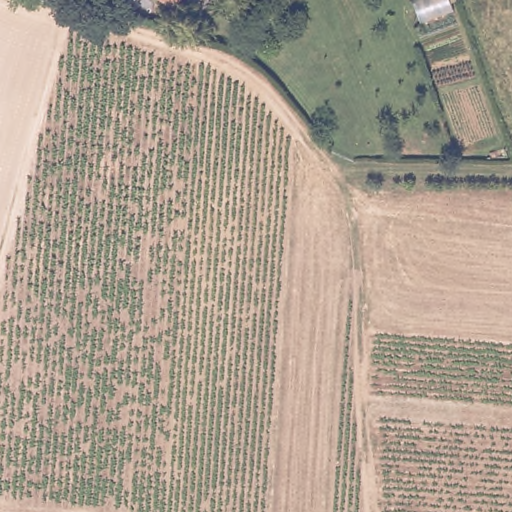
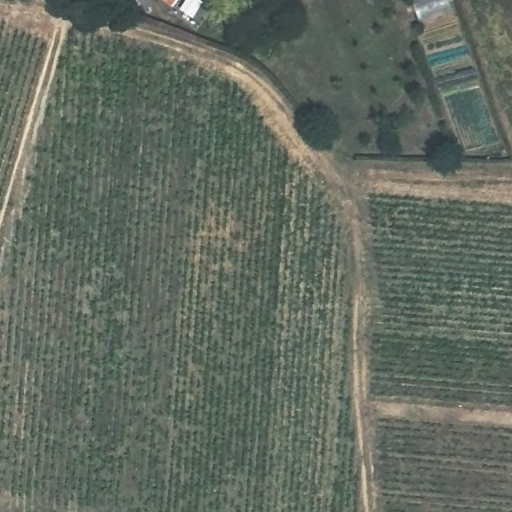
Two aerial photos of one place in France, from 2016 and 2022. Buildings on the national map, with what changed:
unchanged [(160,0),(168,0),(165,4),(160,0)]

